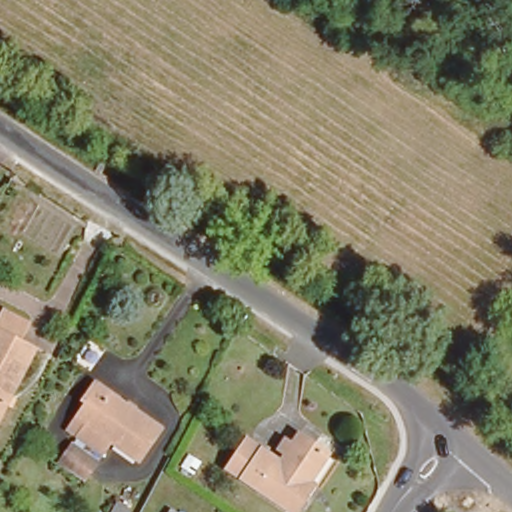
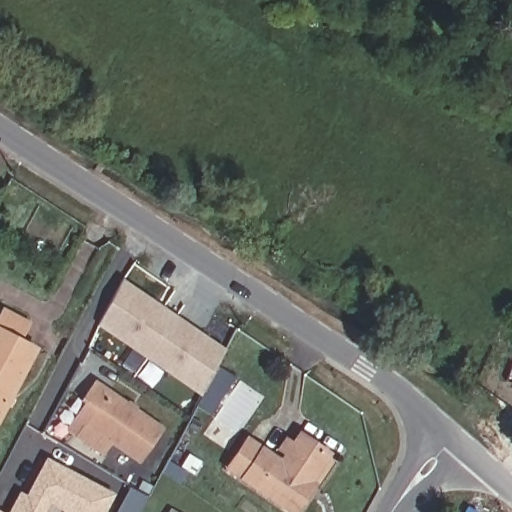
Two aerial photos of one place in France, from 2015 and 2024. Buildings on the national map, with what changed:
new [(95,325),(125,281),(229,352),(217,368),(232,378),(209,413),(194,403),(199,396),(95,325)]
unchanged [(23,343),(0,384),(0,300),(25,314),(11,336),(23,343)]
unchanged [(134,451),(107,434),(99,447),(69,428),(78,414),(70,408),(91,375),(100,380),(155,417),(134,451)]
unchanged [(324,473),(301,511),(221,464),(237,436),(276,458),(296,425),(321,440),(307,463),(324,473)]
demolished [(90,453),(81,468),(52,451),(61,435),(90,453)]
new [(48,503),(43,512),(12,512),(21,496),(27,499),(46,462),(111,496),(103,512),(64,512),(48,503)]

